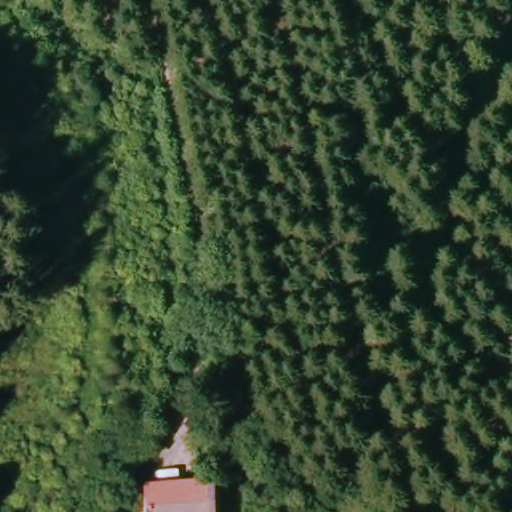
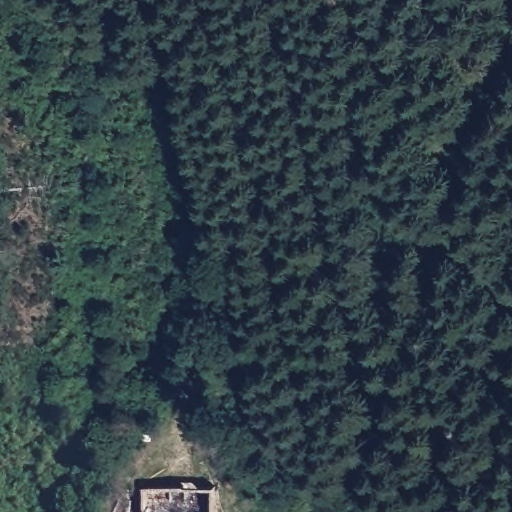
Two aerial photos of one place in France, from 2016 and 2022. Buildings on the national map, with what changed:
unchanged [(127,504),(144,499),(143,488),(217,484),(216,512),(125,512),(127,504)]

